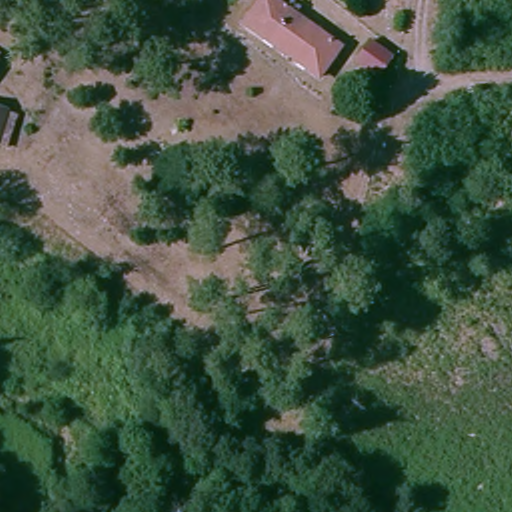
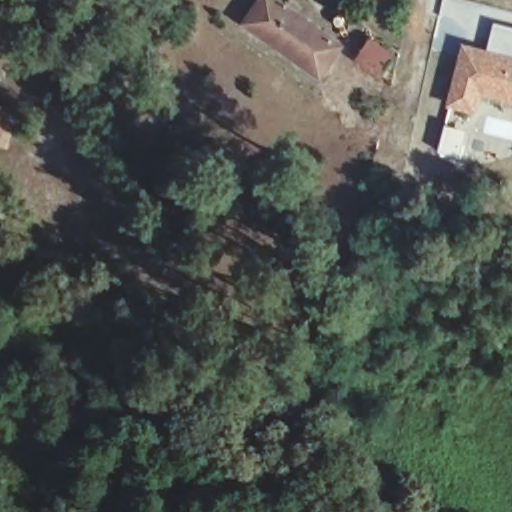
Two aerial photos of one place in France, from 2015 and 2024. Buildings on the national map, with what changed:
unchanged [(265,0),(268,0),(339,49),(319,79),(244,24),(265,0)]
new [(489,50),(495,24),(512,29),(512,103),(483,95),(478,115),(446,106),(462,44),(489,50)]
unchanged [(370,45),(391,58),(378,79),(356,64),(370,45)]
unchanged [(0,128),(0,112),(4,114),(0,128)]

